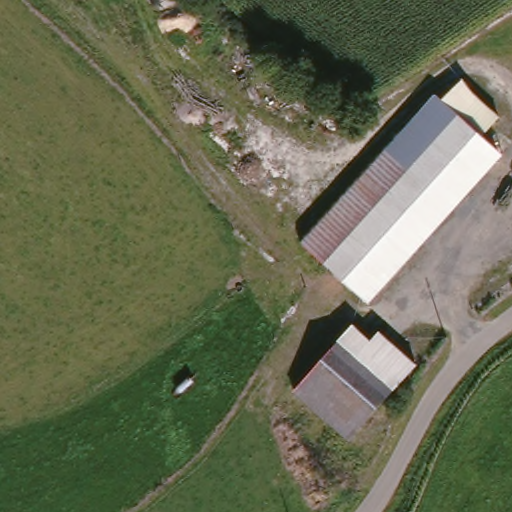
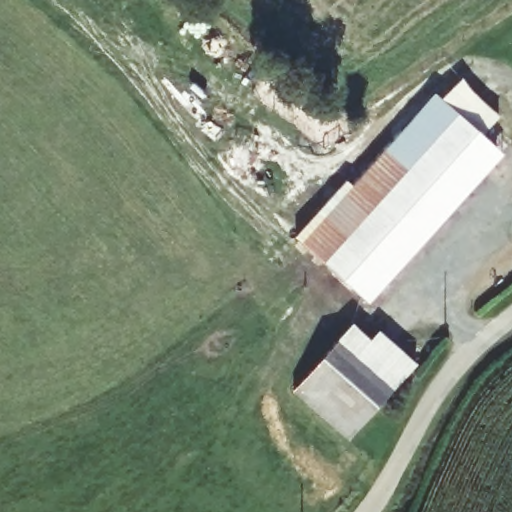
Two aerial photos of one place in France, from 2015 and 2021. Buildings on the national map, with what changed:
unchanged [(304,237),(433,90),(455,113),(321,257),(304,237)]
unchanged [(455,113),(472,95),(499,119),(490,132),(508,149),(370,305),(321,257),(455,113)]
unchanged [(355,319),(375,337),(382,330),(405,349),(409,344),(423,358),(388,389),(335,341),(355,319)]
unchanged [(388,389),(347,436),(290,389),(335,341),(388,389)]

